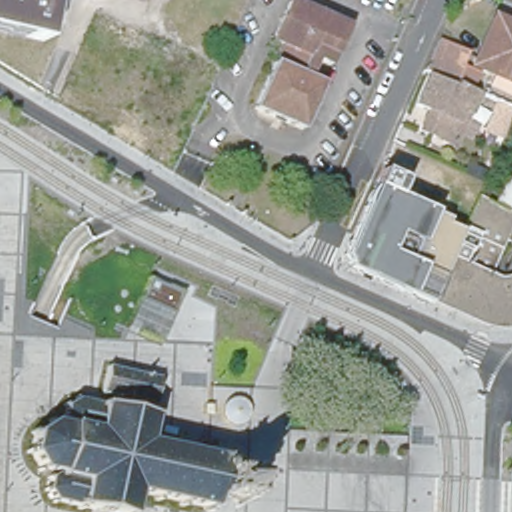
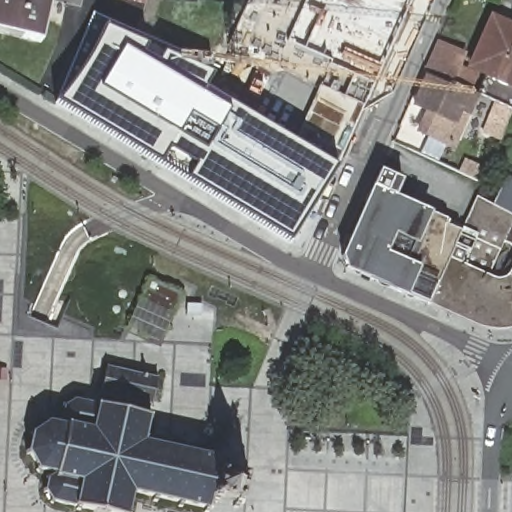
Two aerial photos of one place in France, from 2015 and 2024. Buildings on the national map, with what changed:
unchanged [(50,4),(41,42),(0,32),(0,0),(35,0),(50,4)]
demolished [(274,56),(277,57),(284,39),(272,34),(288,0),(300,0),(348,22),(330,60),(317,54),(309,72),(322,78),(301,124),(253,103),(274,56)]
unchanged [(512,20),(512,79),(479,65),(472,61),(493,12),(501,16),(512,20)]
new [(102,22),(221,75),(209,89),(234,104),(233,108),(240,113),(253,103),(301,124),(322,78),(359,101),(336,169),(285,242),(45,104),(102,22)]
unchanged [(439,36),(465,48),(459,62),(477,70),(470,86),(456,79),(426,66),(439,36)]
unchanged [(428,109),(414,102),(427,72),(454,83),(456,79),(470,86),(478,89),(457,138),(454,143),(421,128),(424,121),(428,109)]
unchanged [(497,98),(487,93),(496,75),(512,82),(512,104),(497,98)]
unchanged [(509,324),(497,324),(490,323),(483,321),(464,314),(449,308),(429,299),(408,290),(398,285),(377,277),(374,275),(357,267),(347,263),(348,260),(343,250),(353,227),(373,181),(448,214),(446,218),(462,225),(472,229),(482,202),(494,207),(510,172),(512,173),(512,323),(509,324)]
unchanged [(190,305),(172,345),(132,327),(150,286),(190,305)]
unchanged [(28,455),(26,450),(32,449),(35,436),(31,432),(34,429),(37,433),(49,426),(49,422),(51,421),(53,426),(71,430),(64,421),(61,421),(59,418),(64,416),(66,409),(64,406),(66,403),(68,406),(75,402),(75,399),(79,398),(79,401),(99,406),(108,367),(159,377),(154,404),(151,404),(149,416),(151,417),(150,421),(148,420),(144,437),(146,437),(145,442),(166,447),(168,442),(172,443),(171,448),(192,453),(193,448),(198,449),(196,454),(215,458),(217,453),(221,454),(219,459),(223,460),(222,464),(224,467),(223,472),(239,476),(240,471),(245,473),(244,477),(249,478),(249,482),(244,481),(241,497),(245,498),(244,502),(240,501),(239,506),(234,505),(234,500),(218,496),(217,501),(210,500),(209,504),(213,504),(212,508),(209,507),(208,512),(203,510),(204,506),(186,502),(185,507),(180,505),(181,501),(160,496),(159,501),(155,500),(156,495),(135,490),(134,495),(131,495),(128,511),(131,512),(111,512),(83,506),(81,509),(77,508),(78,505),(58,501),(56,504),(53,503),(54,500),(49,492),(45,493),(44,490),(48,488),(50,480),(48,477),(49,474),(51,476),(60,471),(45,468),(42,472),(38,470),(40,466),(33,454),(28,455)]

